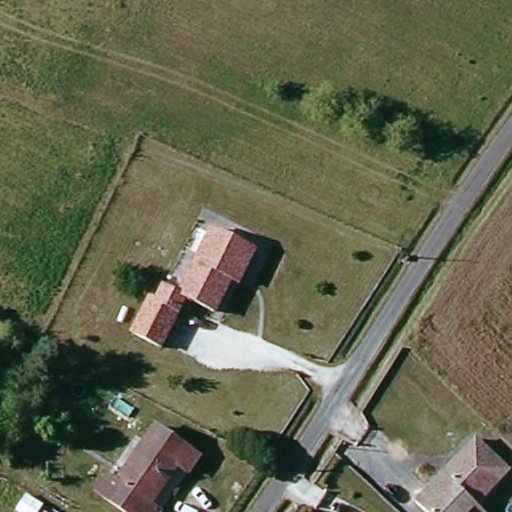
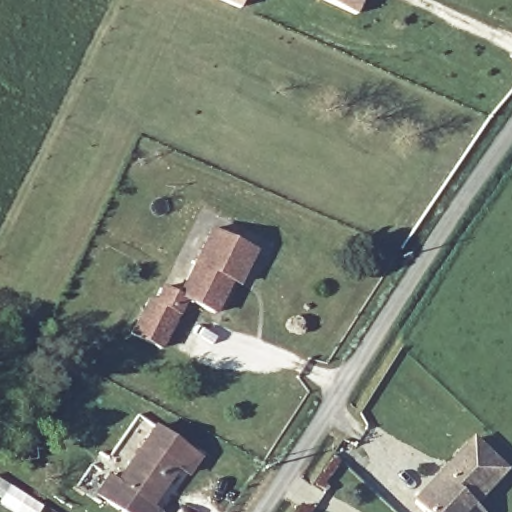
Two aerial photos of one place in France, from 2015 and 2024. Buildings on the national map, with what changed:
new [(224,0),(245,0),(241,7),(224,0)]
new [(325,0),(363,0),(356,15),(325,0)]
unchanged [(165,290),(180,297),(211,231),(255,252),(244,275),(238,272),(215,315),(187,301),(179,316),(157,305),(165,290)]
unchanged [(162,351),(134,337),(151,302),(157,305),(179,316),(162,351)]
unchanged [(107,472),(116,477),(141,437),(182,463),(155,506),(165,512),(129,512),(95,490),(107,472)]
unchanged [(423,508),(483,446),(512,473),(512,483),(484,512),(427,512),(423,508)]

